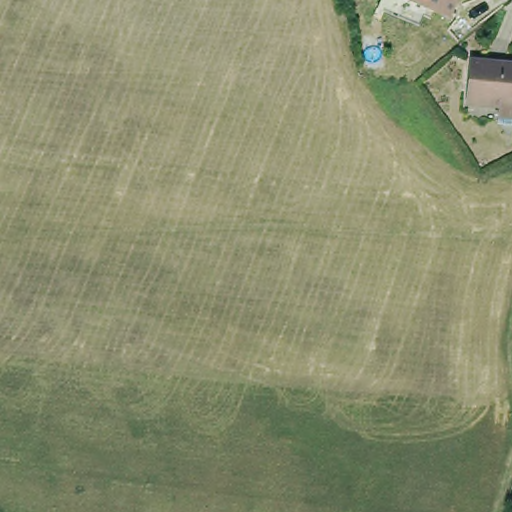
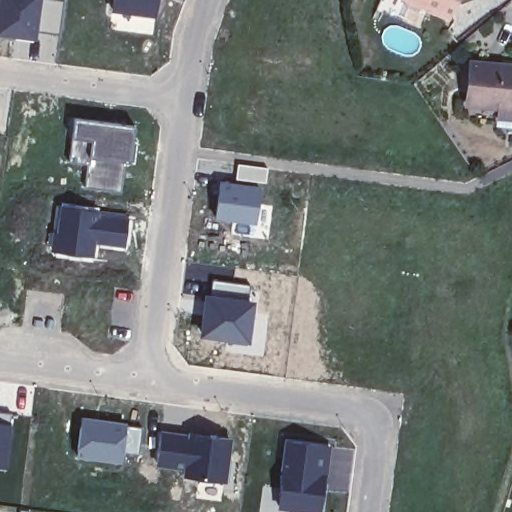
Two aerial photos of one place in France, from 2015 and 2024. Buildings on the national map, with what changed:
new [(42,0),(36,39),(0,35),(0,0),(42,0)]
new [(159,0),(156,18),(109,10),(110,0),(159,0)]
unchanged [(404,0),(455,0),(448,19),(404,0)]
unchanged [(499,98),(465,94),(470,57),(512,62),(512,110),(498,109),(499,98)]
new [(73,115),(139,124),(134,165),(125,164),(87,158),(86,164),(67,162),(73,115)]
new [(86,164),(87,158),(125,164),(121,192),(83,187),(86,164)]
new [(218,179),(234,179),(236,162),(268,166),(266,183),(263,182),(257,224),(214,218),(218,179)]
new [(56,199),(130,212),(125,248),(96,244),(94,258),(48,250),(56,199)]
new [(208,290),(209,284),(183,281),(186,260),(233,267),(231,280),(250,283),(248,298),(254,299),(249,343),(199,335),(203,289),(208,290)]
new [(15,414),(8,468),(0,467),(0,412),(15,414)]
new [(81,414),(142,425),(138,454),(124,452),(123,462),(75,456),(81,414)]
new [(158,429),(232,436),(226,481),(181,475),(181,469),(156,466),(158,429)]
new [(284,436),(332,444),(322,512),(308,512),(277,509),(284,436)]

